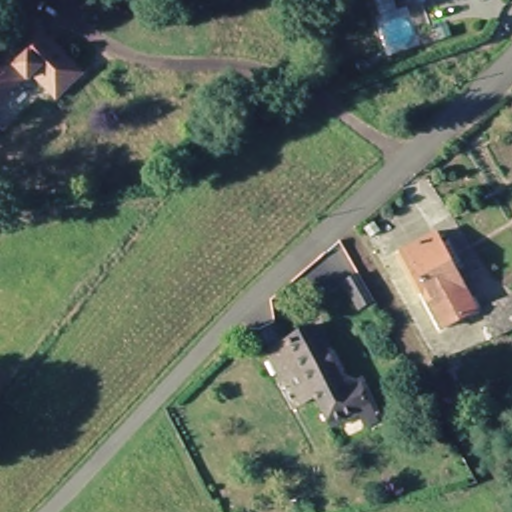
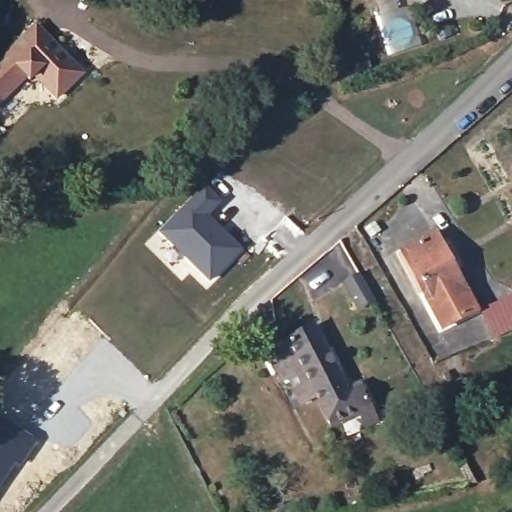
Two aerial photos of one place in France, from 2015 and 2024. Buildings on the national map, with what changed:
unchanged [(371,0),(374,0),(371,1),(371,0)]
unchanged [(85,72),(60,97),(39,76),(32,82),(26,77),(0,104),(0,62),(37,26),(85,72)]
new [(205,183),(224,201),(210,215),(245,248),(210,284),(157,230),(205,183)]
unchanged [(403,254),(435,238),(472,306),(476,312),(445,330),(441,325),(403,254)]
unchanged [(355,273),(370,301),(355,309),(339,281),(355,273)]
unchanged [(495,307),(511,336),(495,343),(479,315),(495,307)]
unchanged [(290,378),(284,381),(268,353),(289,342),(315,328),(351,395),(362,389),(381,423),(368,431),(358,414),(335,426),(320,399),(305,406),(290,378)]
new [(38,439),(19,469),(15,467),(0,489),(0,418),(2,415),(38,439)]

